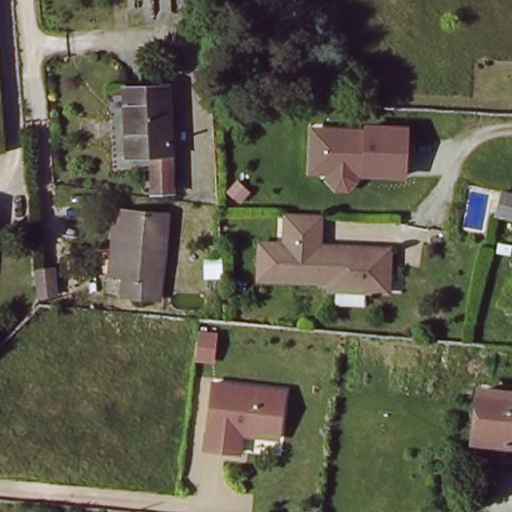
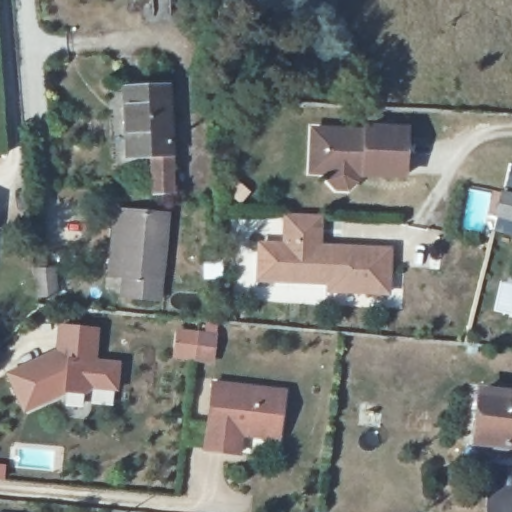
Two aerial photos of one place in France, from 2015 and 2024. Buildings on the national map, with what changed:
unchanged [(155,189),(152,152),(128,154),(121,85),(167,83),(172,150),(175,187),(155,189)]
unchanged [(408,177),(364,178),(357,188),(331,188),(326,176),(310,175),(312,124),(412,125),(408,177)]
unchanged [(503,190),(512,193),(512,222),(497,218),(503,190)]
unchanged [(321,210),(320,242),(392,245),(390,288),(329,286),(329,278),(276,276),(277,240),(285,240),(286,209),(321,210)]
unchanged [(162,301),(122,299),(123,279),(118,279),(109,278),(113,210),(124,211),(167,214),(162,301)]
unchanged [(223,280),(207,280),(205,258),(221,258),(223,280)]
unchanged [(38,270),(57,270),(59,295),(40,296),(38,270)]
new [(53,349),(55,324),(97,326),(95,358),(120,360),(117,391),(92,390),(84,395),(64,393),(22,414),(4,372),(53,349)]
new [(218,333),(214,364),(171,359),(176,329),(218,333)]
unchanged [(289,387),(284,439),(248,435),(246,454),(203,450),(214,381),(289,387)]
unchanged [(474,425),(476,394),(512,397),(512,452),(472,449),(474,425)]

